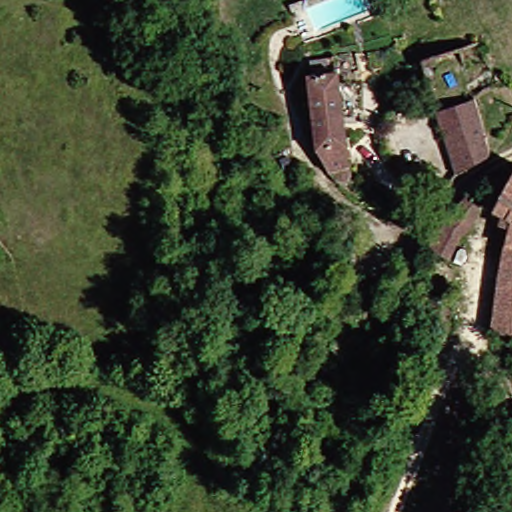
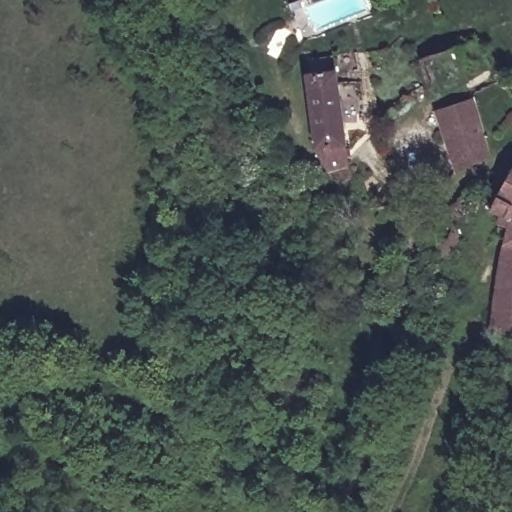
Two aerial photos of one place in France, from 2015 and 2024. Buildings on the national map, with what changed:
unchanged [(314,138),(315,80),(342,76),(345,132),(357,159),(328,174),(314,138)]
unchanged [(478,98),(495,159),(460,173),(440,112),(478,98)]
unchanged [(508,219),(490,209),(512,167),(512,297),(494,293),(502,245),(508,219)]
unchanged [(488,203),(451,259),(433,250),(468,195),(488,203)]
unchanged [(487,331),(494,293),(512,297),(512,338),(510,338),(487,331)]

